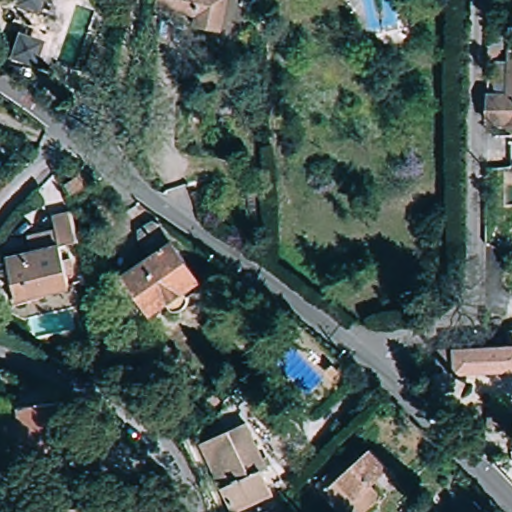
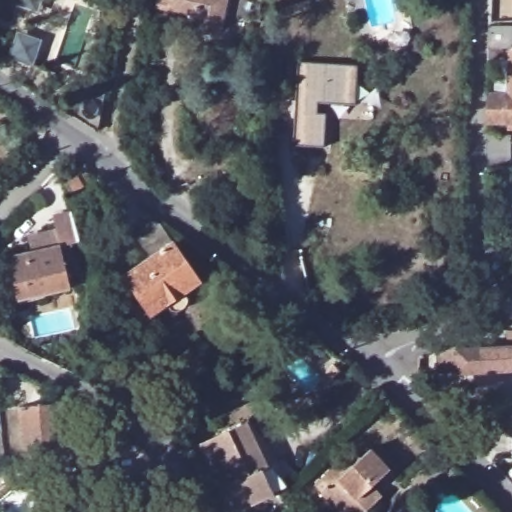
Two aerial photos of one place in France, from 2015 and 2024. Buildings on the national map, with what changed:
unchanged [(13,2),(13,0),(40,0),(36,10),(13,2)]
unchanged [(196,9),(158,1),(158,0),(226,0),(221,25),(195,20),(196,9)]
unchanged [(31,64),(7,56),(15,33),(38,40),(31,64)]
unchanged [(489,75),(489,62),(490,40),(512,41),(512,142),(508,142),(508,136),(488,136),(488,106),(498,106),(498,76),(489,75)]
new [(359,60),(358,101),(320,100),(320,110),(329,110),(329,145),(296,144),(299,59),(359,60)]
unchanged [(68,111),(78,90),(106,100),(99,132),(68,111)]
unchanged [(92,180),(71,194),(66,184),(85,171),(92,180)]
unchanged [(80,241),(60,245),(70,286),(18,298),(7,256),(31,251),(28,236),(59,229),(55,215),(70,210),(80,241)]
unchanged [(190,298),(188,305),(182,309),(176,310),(170,307),(166,303),(151,313),(125,275),(152,255),(139,237),(138,227),(151,218),(156,220),(200,279),(186,288),(188,294),(190,298)]
unchanged [(483,376),(483,373),(445,375),(444,367),(444,345),(452,341),(476,340),(477,343),(512,342),(512,375),(483,376)]
unchanged [(28,397),(67,393),(71,423),(76,422),(78,443),(35,449),(28,397)]
unchanged [(216,410),(205,421),(200,415),(211,405),(216,410)]
unchanged [(485,410),(512,411),(512,427),(484,426),(485,410)]
unchanged [(243,512),(233,512),(202,448),(228,435),(219,418),(229,413),(231,416),(238,413),(247,426),(250,425),(294,487),(243,512)]
unchanged [(368,512),(346,512),(322,485),(360,451),(366,457),(375,448),(395,468),(376,484),(387,495),(370,510),(368,512)]
unchanged [(19,472),(16,453),(30,451),(33,470),(19,472)]
unchanged [(130,505),(130,512),(71,512),(71,506),(130,505)]

